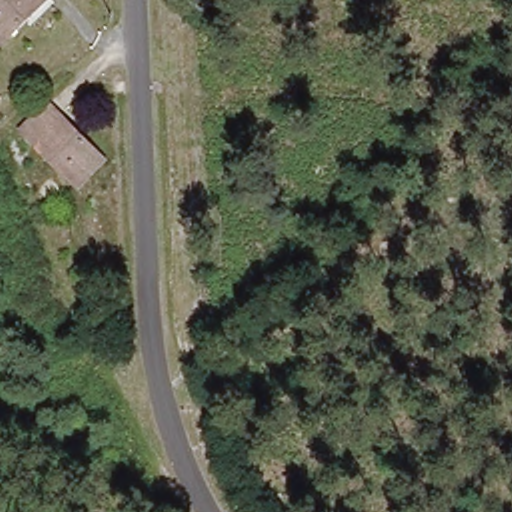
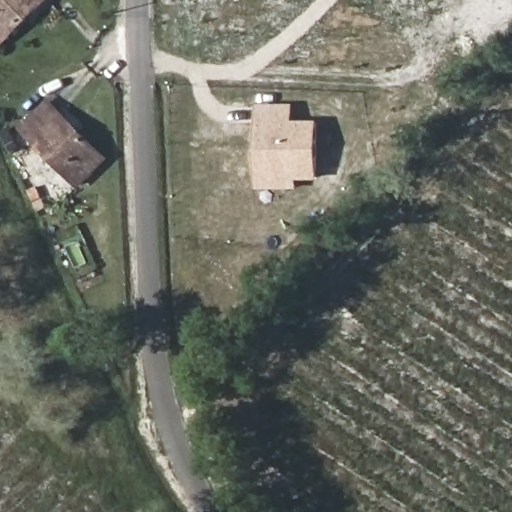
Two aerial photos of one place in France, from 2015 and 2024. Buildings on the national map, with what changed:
unchanged [(0,32),(0,0),(38,0),(3,35),(0,32)]
unchanged [(74,178),(22,128),(50,100),(100,151),(74,178)]
new [(290,104),(292,120),(317,121),(315,181),(297,180),(295,190),(257,189),(256,105),(290,104)]

